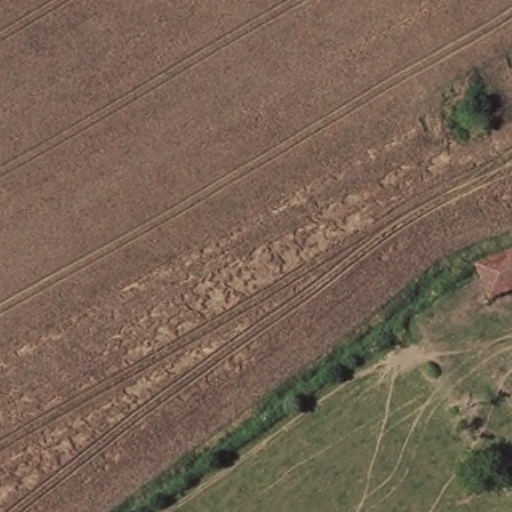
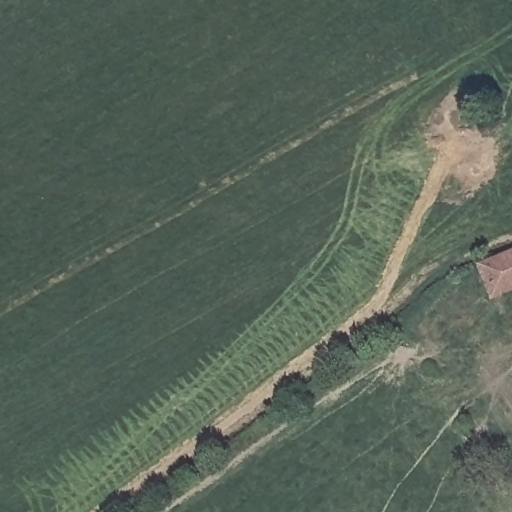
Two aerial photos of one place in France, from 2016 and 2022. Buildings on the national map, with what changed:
unchanged [(512,252),(512,293),(489,301),(475,265),(512,252)]

